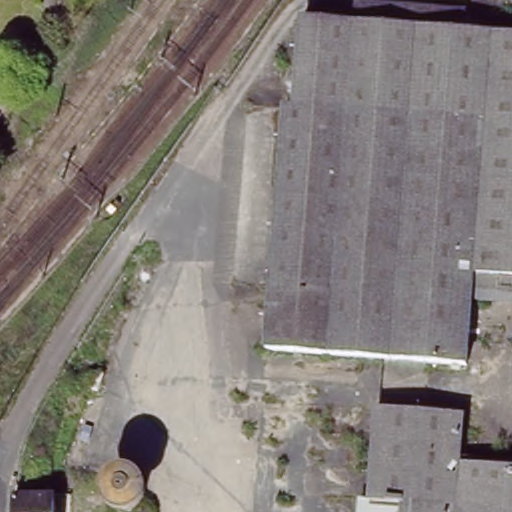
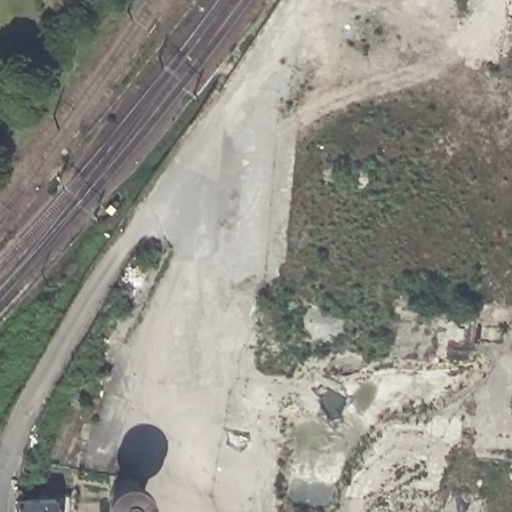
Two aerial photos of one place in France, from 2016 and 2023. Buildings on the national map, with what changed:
demolished [(467,35),(512,40),(512,283),(475,280),(473,303),(468,369),(270,353),(290,111),(297,112),(305,22),(356,27),(358,10),(468,19),(467,35)]
unchanged [(40,49),(40,13),(61,13),(61,45),(61,49),(58,49),(52,49),(40,49)]
demolished [(463,443),(461,469),(512,473),(512,512),(369,512),(377,409),(465,417),(463,443)]
unchanged [(15,512),(15,498),(17,498),(54,497),(54,512),(15,512)]

